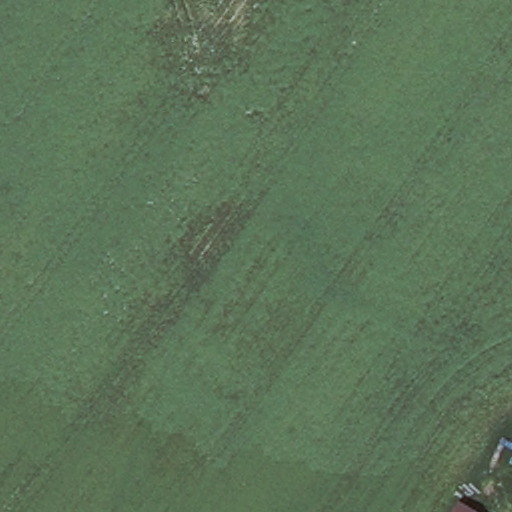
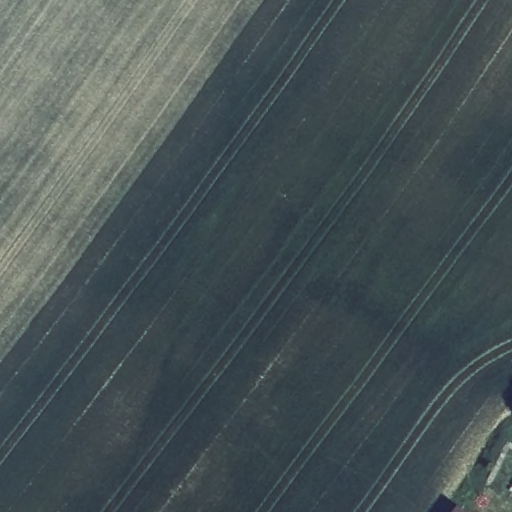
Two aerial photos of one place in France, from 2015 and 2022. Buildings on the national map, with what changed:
unchanged [(458,512),(449,512),(453,508),(458,512)]

